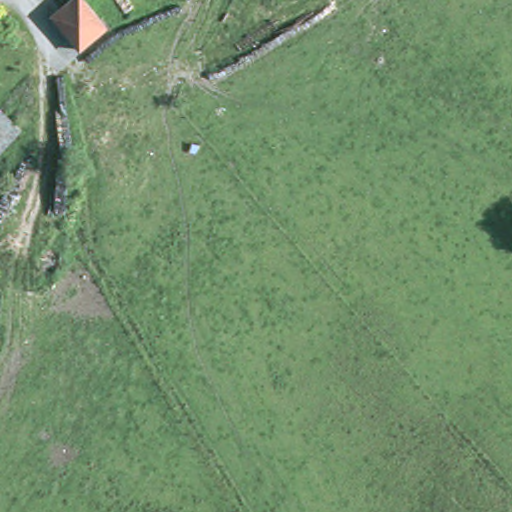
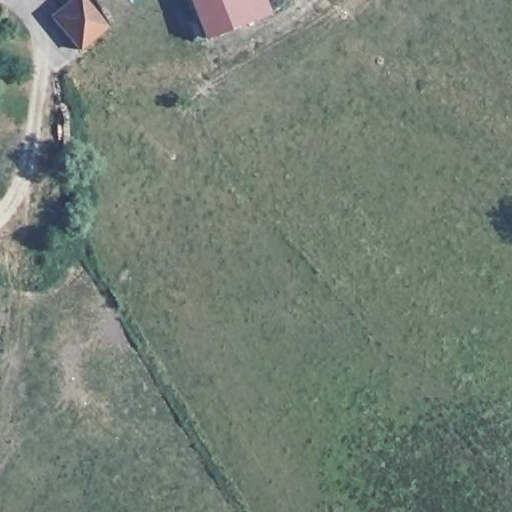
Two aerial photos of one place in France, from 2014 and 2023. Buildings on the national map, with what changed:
unchanged [(113,27),(81,54),(45,17),(66,0),(88,0),(113,27)]
new [(271,14),(204,41),(188,0),(265,0),(271,14)]
demolished [(16,127),(0,145),(0,112),(16,127)]

